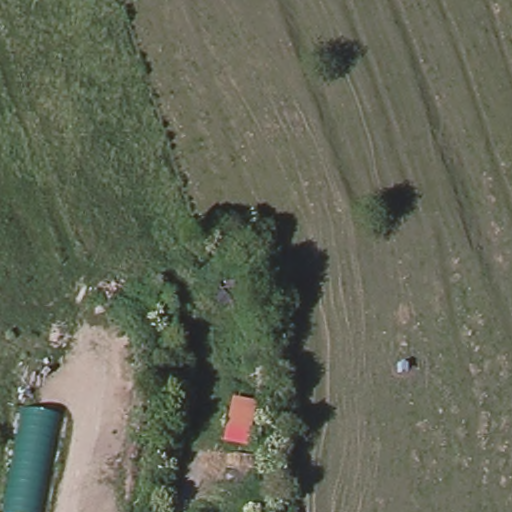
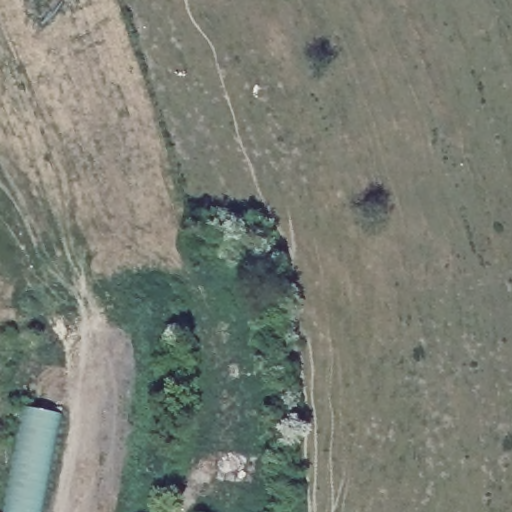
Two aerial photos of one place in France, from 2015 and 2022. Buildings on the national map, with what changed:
unchanged [(258,397),(248,443),(223,439),(232,392),(258,397)]
unchanged [(44,512),(3,512),(22,406),(63,411),(44,512)]

